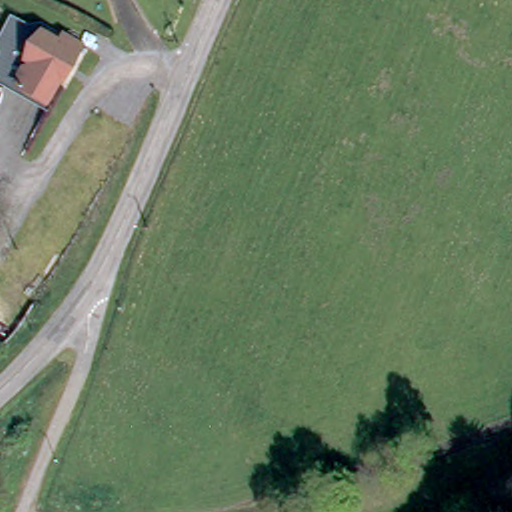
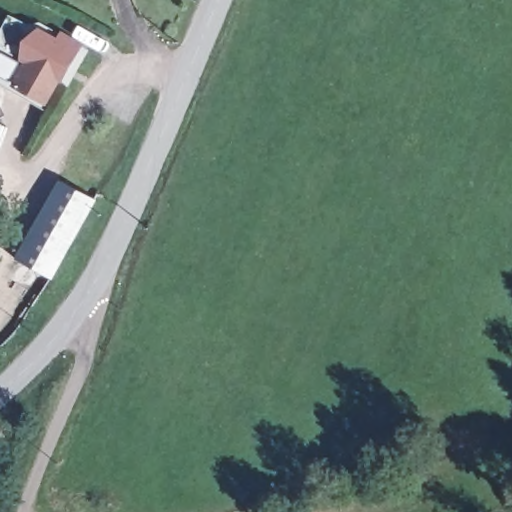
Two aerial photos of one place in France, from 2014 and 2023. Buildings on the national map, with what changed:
unchanged [(36,48),(34,46),(37,32),(37,30),(49,20),(85,41),(70,67),(69,66),(55,89),(22,70),(36,48)]
new [(95,199),(51,277),(15,258),(60,179),(95,199)]

